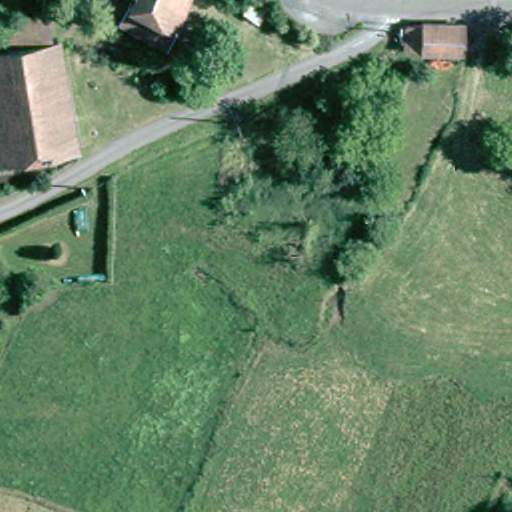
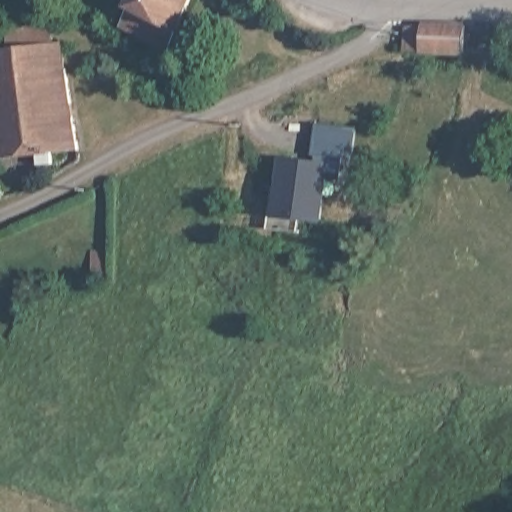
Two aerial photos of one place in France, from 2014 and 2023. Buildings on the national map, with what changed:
unchanged [(136,0),(191,0),(168,55),(122,30),(136,0)]
unchanged [(2,23),(45,17),(48,43),(5,50),(2,23)]
unchanged [(415,54),(402,53),(402,31),(417,29),(458,29),(458,56),(432,55),(415,54)]
unchanged [(55,42),(75,149),(50,152),(52,163),(36,165),(35,156),(0,160),(0,51),(5,50),(48,43),(55,42)]
new [(328,172),(323,221),(275,216),(279,157),(310,160),(314,122),(355,126),(352,159),(342,158),(340,172),(328,172)]

